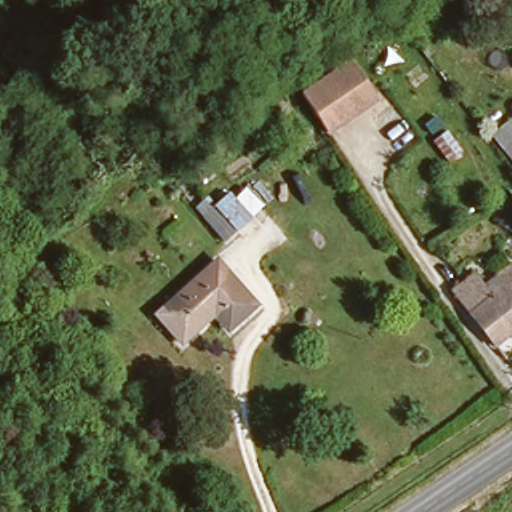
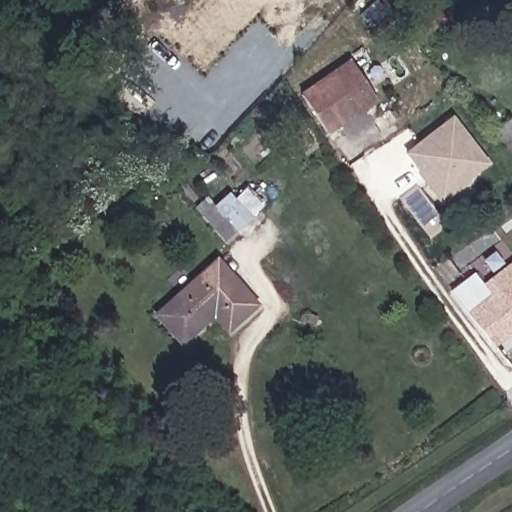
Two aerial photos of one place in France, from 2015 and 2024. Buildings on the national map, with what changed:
unchanged [(345,62),(370,92),(352,107),(325,129),(298,99),(330,74),(345,62)]
new [(442,205),(403,154),(452,115),(490,164),(442,205)]
unchanged [(512,121),(512,167),(490,136),(512,121)]
unchanged [(219,244),(191,206),(217,181),(225,187),(236,179),(262,209),(219,244)]
unchanged [(206,311),(176,338),(151,311),(210,260),(249,304),(230,321),(223,328),(206,311)]
unchanged [(512,329),(490,346),(450,296),(445,290),(467,273),(472,280),(481,288),(512,265),(512,329)]

